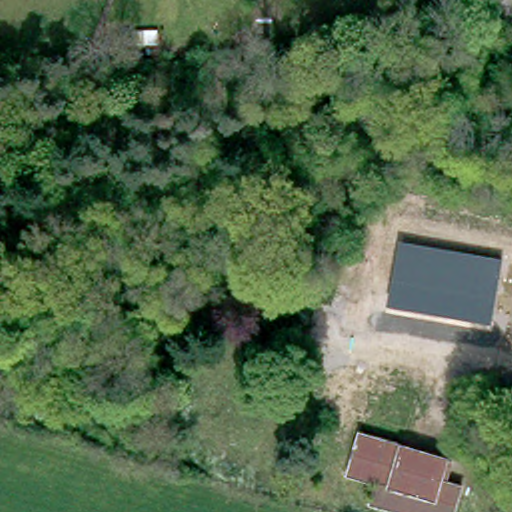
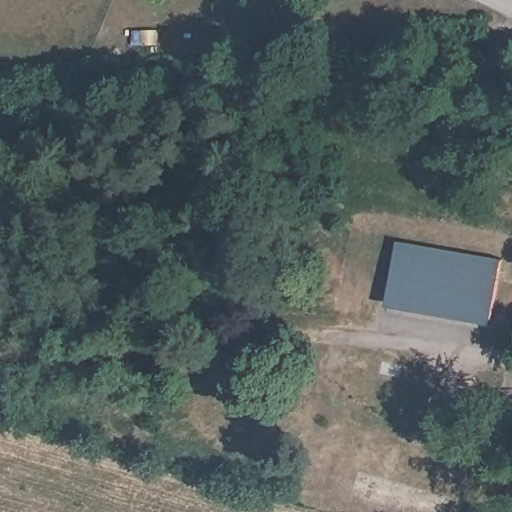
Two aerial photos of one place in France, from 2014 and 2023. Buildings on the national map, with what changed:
unchanged [(501,257),(491,321),(387,303),(399,238),(501,257)]
demolished [(460,512),(407,512),(375,503),(380,482),(351,473),(360,440),(362,434),(377,438),(377,443),(402,449),(404,446),(452,459),(447,482),(467,487),(460,512)]

